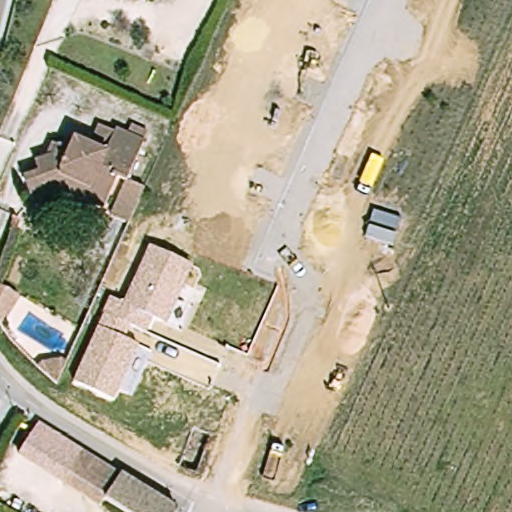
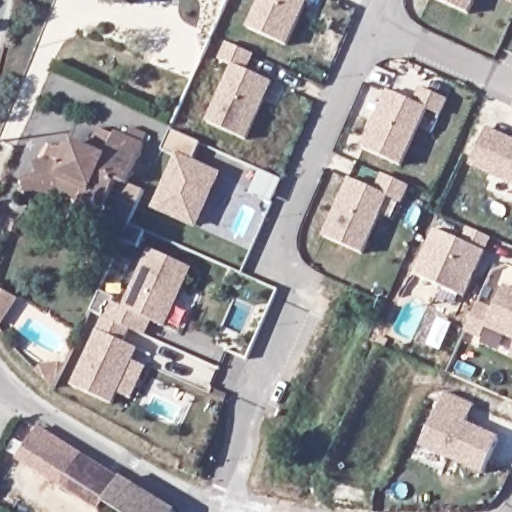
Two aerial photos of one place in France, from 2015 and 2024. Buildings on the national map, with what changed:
new [(308,0),(288,45),(250,28),(262,0),(308,0)]
new [(439,0),(474,0),(469,13),(439,0)]
new [(235,65),(221,59),(229,42),(255,54),(248,70),(273,81),(247,139),(209,123),(235,65)]
new [(389,89),(414,101),(421,86),(447,98),(440,113),(427,107),(402,164),(363,147),(389,89)]
new [(470,166),(487,128),(512,139),(512,187),(470,166)]
unchanged [(180,156),(164,149),(172,129),(202,142),(194,161),(220,172),(197,224),(157,206),(180,156)]
unchanged [(65,196),(38,201),(33,192),(31,181),(44,176),(43,162),(57,159),(61,148),(73,148),(75,143),(109,157),(121,133),(148,145),(130,186),(147,193),(131,230),(108,220),(111,215),(65,196)]
new [(349,177),(375,188),(382,172),(409,183),(401,200),(387,194),(378,213),(361,252),(323,235),(349,177)]
new [(460,241),(469,228),(493,238),(486,252),(466,298),(414,275),(435,230),(460,241)]
unchanged [(151,323),(145,335),(130,327),(122,343),(135,348),(111,405),(73,386),(97,334),(110,303),(123,307),(147,250),(190,269),(166,326),(151,323)]
new [(494,307),(505,285),(512,288),(512,340),(487,329),(482,340),(465,332),(478,303),(494,307)]
new [(0,328),(0,289),(21,300),(0,328)]
new [(446,393),(476,405),(467,423),(501,437),(484,475),(423,448),(446,393)]
unchanged [(104,506),(64,482),(83,452),(122,475),(108,499),(104,506)]
unchanged [(177,512),(127,512),(108,499),(122,475),(178,509),(177,512)]

